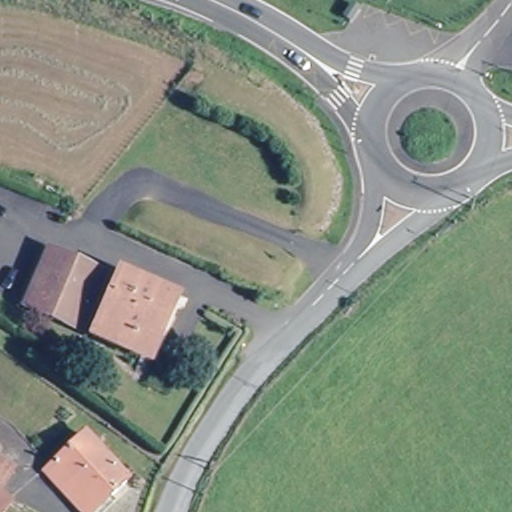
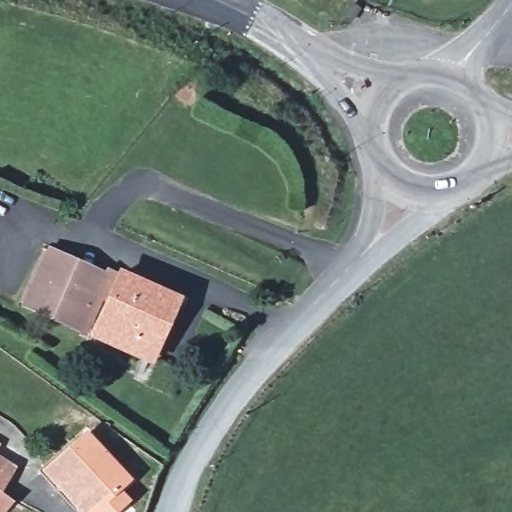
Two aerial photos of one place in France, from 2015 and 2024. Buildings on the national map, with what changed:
unchanged [(109,273),(76,327),(22,298),(51,242),(109,273)]
unchanged [(76,327),(109,273),(115,263),(129,271),(112,303),(103,299),(85,332),(76,327)]
unchanged [(183,298),(145,365),(85,332),(103,299),(112,303),(129,271),(183,298)]
unchanged [(164,398),(142,388),(154,363),(177,376),(164,398)]
unchanged [(82,504),(58,478),(95,445),(119,470),(82,504)]

